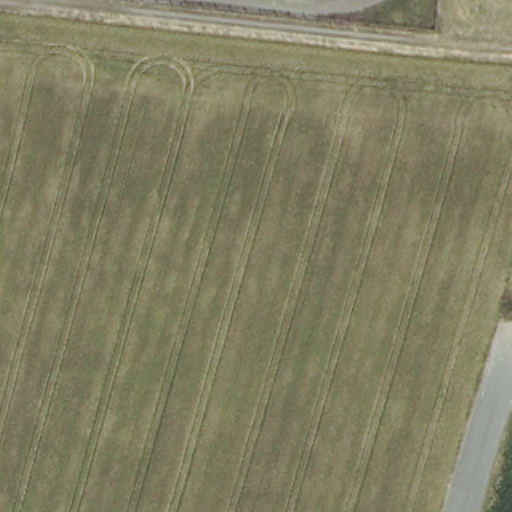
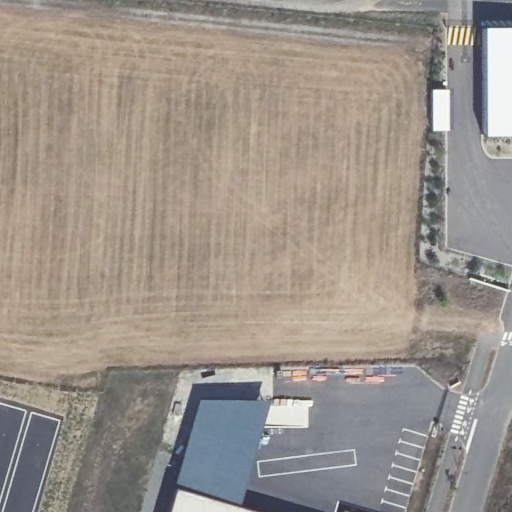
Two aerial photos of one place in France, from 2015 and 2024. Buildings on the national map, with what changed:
new [(512,132),(472,133),(482,25),(512,25),(512,132)]
new [(196,395),(266,398),(255,448),(239,504),(172,484),(196,395)]
new [(172,484),(239,504),(268,512),(164,512),(172,484)]
new [(343,508),(356,512),(341,512),(343,508)]

